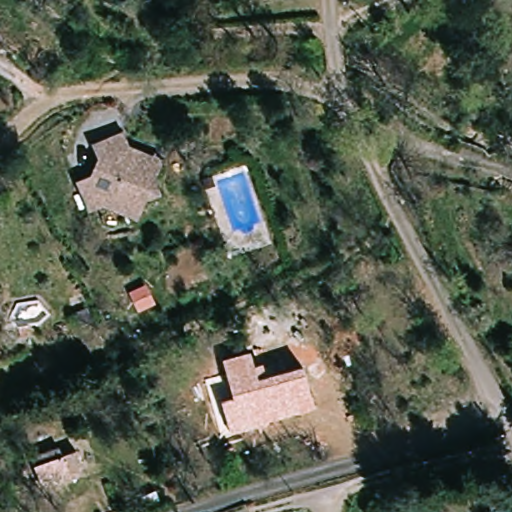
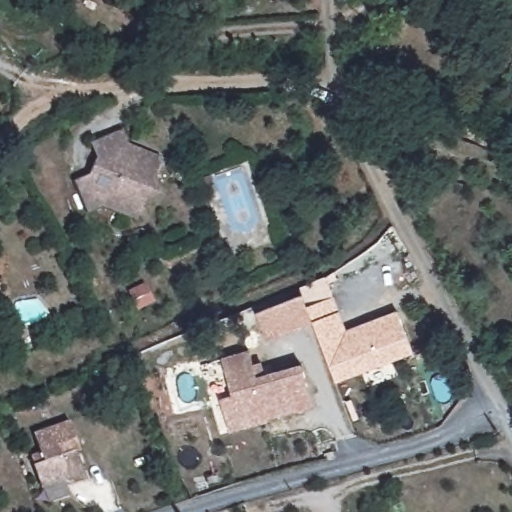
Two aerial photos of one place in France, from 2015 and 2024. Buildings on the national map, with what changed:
unchanged [(93,195),(77,196),(75,162),(92,161),(103,145),(103,129),(137,127),(137,144),(156,161),(165,169),(150,186),(153,203),(136,203),(122,220),(112,212),(93,195)]
new [(341,312),(348,331),(398,312),(415,356),(337,385),(315,328),(312,328),(306,310),(335,298),(341,312)]
new [(303,301),(312,328),(284,338),(267,344),(257,316),(275,310),(303,301)]
unchanged [(316,407),(232,431),(221,401),(233,397),(222,359),(251,351),(255,366),(264,362),(269,374),(303,365),(316,407)]
unchanged [(36,461),(32,446),(58,438),(63,454),(82,448),(90,473),(70,479),(44,487),(36,461)]

